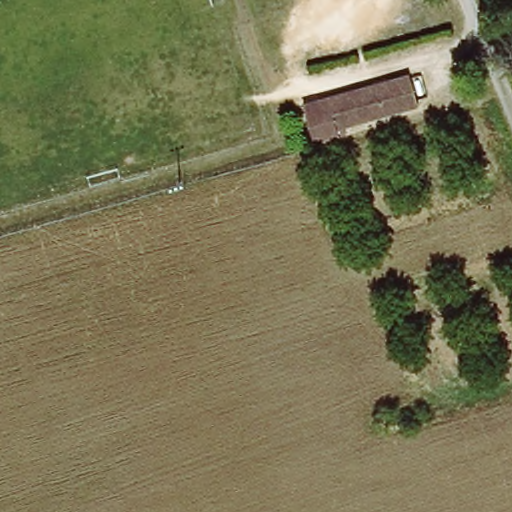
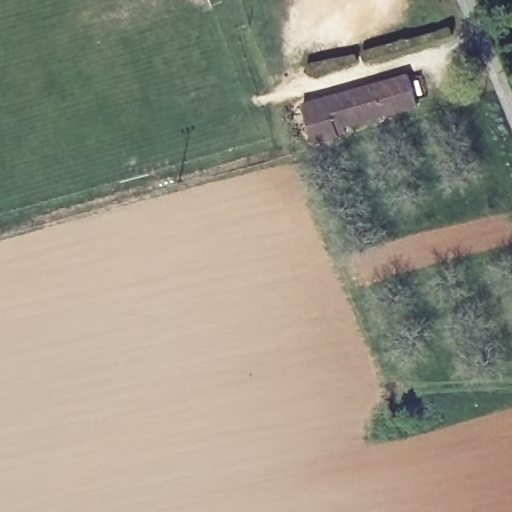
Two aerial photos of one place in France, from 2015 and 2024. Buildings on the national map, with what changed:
unchanged [(412,108),(337,132),(339,139),(312,146),(301,110),(403,78),(412,108)]

